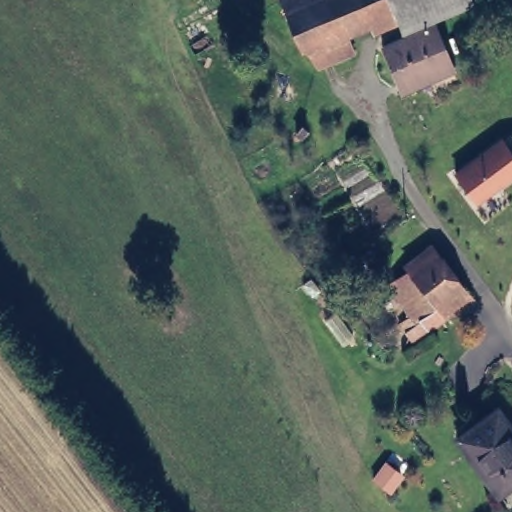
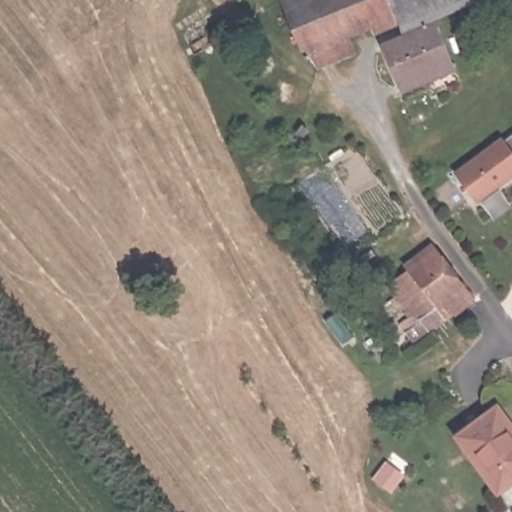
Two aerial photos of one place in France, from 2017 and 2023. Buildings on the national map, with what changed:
unchanged [(179,24),(166,7),(176,0),(195,0),(201,9),(179,24)]
unchanged [(352,40),(360,60),(315,76),(280,0),(474,0),(476,4),(439,19),(380,40),(375,29),(352,40)]
unchanged [(459,76),(403,99),(380,40),(439,19),(459,76)]
unchanged [(504,141),(512,134),(512,177),(477,203),(453,171),(502,137),(504,141)]
unchanged [(414,323),(382,280),(399,268),(404,274),(438,251),(464,288),(414,323)]
unchanged [(425,338),(414,323),(464,288),(474,303),(425,338)]
unchanged [(490,487),(453,435),(489,408),(512,441),(512,472),(490,487)]

